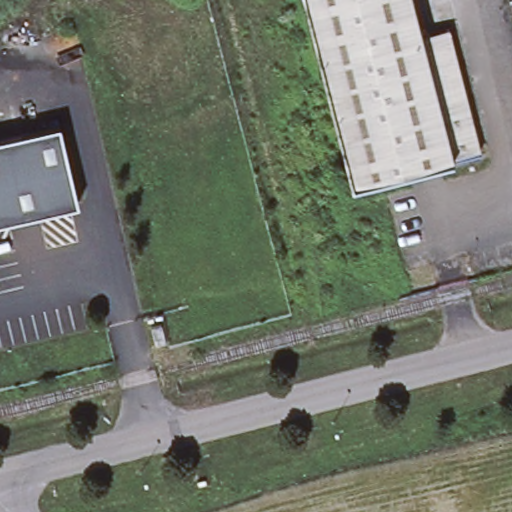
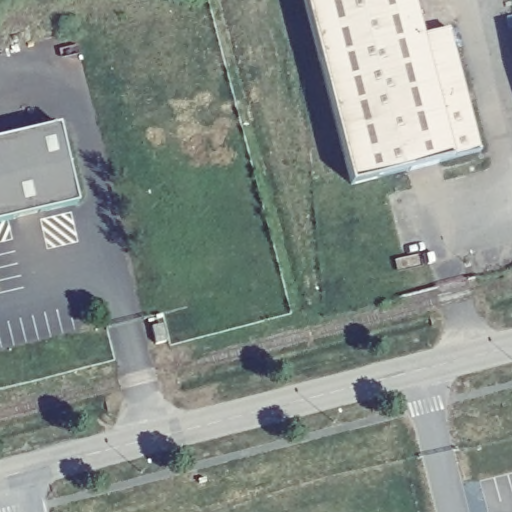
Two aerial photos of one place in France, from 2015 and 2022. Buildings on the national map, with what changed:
unchanged [(447,21),(479,144),(350,178),(304,0),(411,0),(418,28),(447,21)]
unchanged [(79,201),(0,220),(0,137),(60,123),(79,201)]
unchanged [(163,339),(153,342),(149,326),(159,323),(163,339)]

